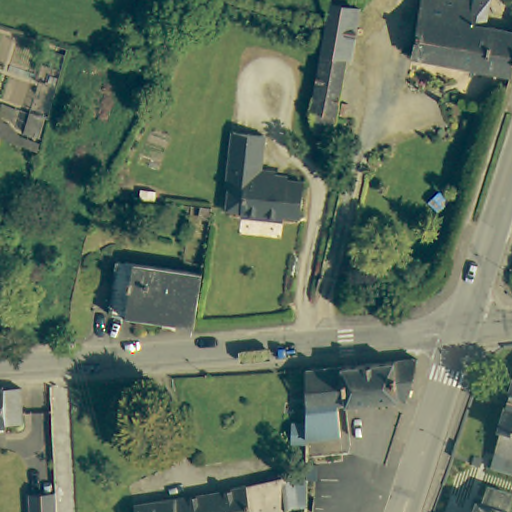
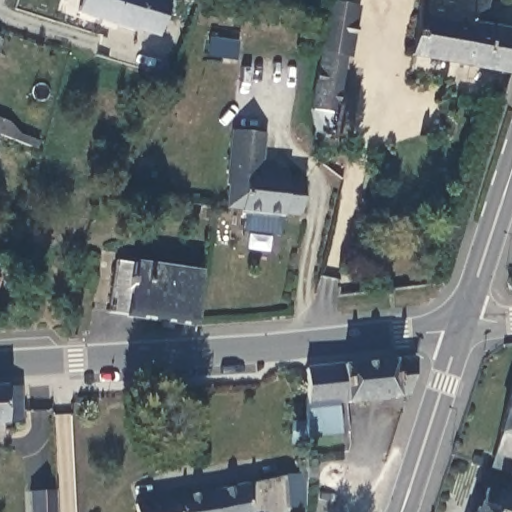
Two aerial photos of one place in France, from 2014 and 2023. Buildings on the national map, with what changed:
new [(159,35),(135,28),(134,31),(77,14),(81,0),(170,0),(159,35)]
unchanged [(328,0),(350,0),(352,0),(329,142),(316,142),(309,118),(328,0)]
unchanged [(420,0),(465,0),(476,1),(475,6),(482,7),(481,13),(484,14),(483,23),(494,24),(482,64),(412,55),(420,0)]
unchanged [(512,27),(512,54),(506,67),(482,64),(494,24),(512,27)]
demolished [(14,101),(26,104),(22,117),(10,114),(14,101)]
demolished [(47,113),(58,115),(52,137),(41,133),(47,113)]
unchanged [(20,123),(28,135),(50,143),(48,149),(0,133),(0,115),(20,123)]
unchanged [(274,170),(273,178),(285,180),(286,176),(305,177),(302,212),(285,211),(284,216),(245,212),(245,208),(228,207),(232,184),(227,183),(231,148),(233,129),(263,132),(261,153),(260,169),(274,170)]
unchanged [(204,272),(198,324),(109,313),(115,261),(204,272)]
unchanged [(9,284),(1,312),(0,312),(0,283),(9,284)]
unchanged [(305,456),(305,439),(302,439),(289,439),(290,419),(302,419),(302,367),(340,364),(418,359),(409,392),(408,396),(343,402),(337,403),(338,435),(337,435),(337,453),(305,456)]
unchanged [(282,376),(282,375),(283,374),(283,373),(284,372),(285,372),(286,371),(287,370),(288,370),(289,370),(290,370),(291,370),(292,370),(293,370),(294,370),(296,371),(297,372),(298,373),(299,374),(299,375),(300,377),(300,379),(300,380),(300,382),(300,383),(299,384),(298,385),(297,386),(297,387),(296,387),(295,388),(294,388),(293,388),(291,389),(290,389),(289,389),(288,388),(287,388),(286,387),(285,387),(284,386),(283,386),(283,385),(282,384),(282,383),(281,382),(281,381),(281,380),(281,379),(281,377),(282,376)]
unchanged [(24,389),(23,424),(0,424),(0,390),(24,389)]
unchanged [(501,438),(500,438),(512,400),(512,481),(490,475),(501,438)]
unchanged [(288,479),(304,477),(302,505),(291,507),(292,512),(251,512),(248,486),(288,479)]
unchanged [(512,493),(506,511),(510,512),(478,512),(486,485),(512,493)]
unchanged [(248,486),(251,512),(135,512),(135,508),(248,486)]
unchanged [(25,487),(50,487),(51,512),(30,512),(25,512),(25,487)]

